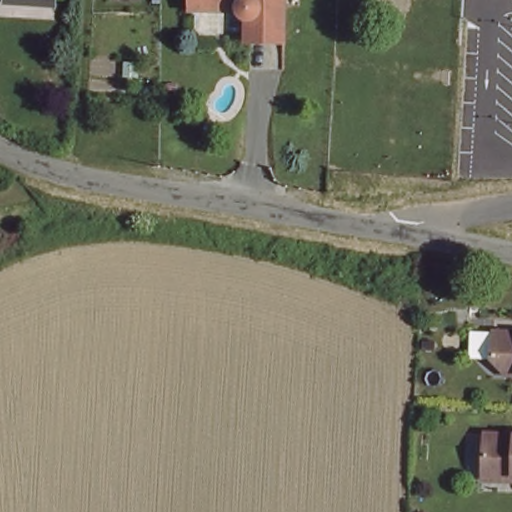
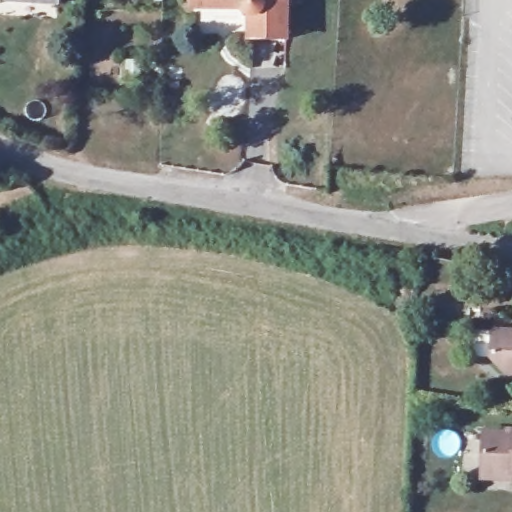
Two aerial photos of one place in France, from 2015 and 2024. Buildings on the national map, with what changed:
unchanged [(41,2),(12,1),(12,0),(60,0),(60,2),(41,2)]
unchanged [(290,40),(259,39),(259,13),(249,13),(250,7),(209,6),(194,5),(194,0),(289,0),(290,40)]
unchanged [(512,368),(494,367),(484,354),(485,328),(512,328),(512,368)]
unchanged [(480,468),(480,429),(512,429),(512,469),(507,469),(507,474),(479,474),(480,468)]

